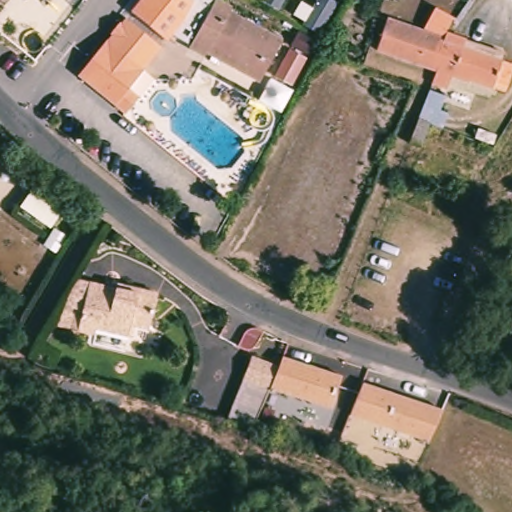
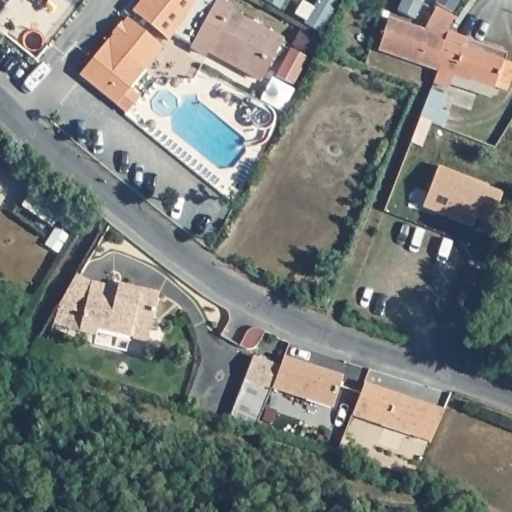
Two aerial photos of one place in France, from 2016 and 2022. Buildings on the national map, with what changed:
unchanged [(170,44),(131,11),(140,0),(216,0),(210,11),(195,2),(175,38),(170,44)]
unchanged [(261,80),(209,52),(207,57),(190,48),(191,46),(175,38),(195,2),(210,11),(216,0),(218,0),(233,8),(230,12),(283,40),(261,80)]
unchanged [(379,49),(388,19),(424,31),(436,10),(453,19),(447,32),(446,34),(439,62),(437,70),(427,66),(379,49)]
unchanged [(94,61),(109,40),(128,18),(164,47),(130,88),(141,97),(129,112),(88,80),(82,75),(94,61)]
unchanged [(450,82),(448,87),(433,82),(437,70),(439,62),(446,34),(447,32),(467,39),(506,53),(503,61),(512,65),(512,76),(507,91),(494,87),(490,96),(450,82)]
unchanged [(419,118),(432,122),(422,148),(409,143),(419,118)]
new [(439,165),(489,185),(488,186),(503,192),(491,224),(476,218),(473,226),(423,206),(439,165)]
unchanged [(87,310),(94,280),(120,287),(121,282),(130,284),(161,292),(152,328),(138,324),(133,326),(131,334),(100,326),(99,332),(70,325),(75,307),(87,310)]
unchanged [(279,363),(282,355),(342,374),(331,407),(270,388),(253,429),(227,420),(253,355),(279,363)]
unchanged [(442,407),(427,440),(351,413),(363,381),(442,407)]

